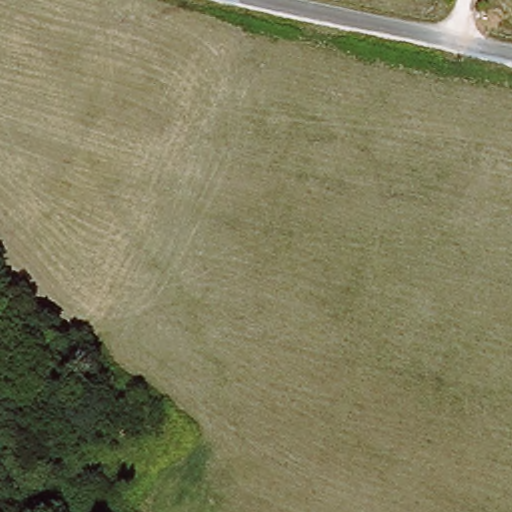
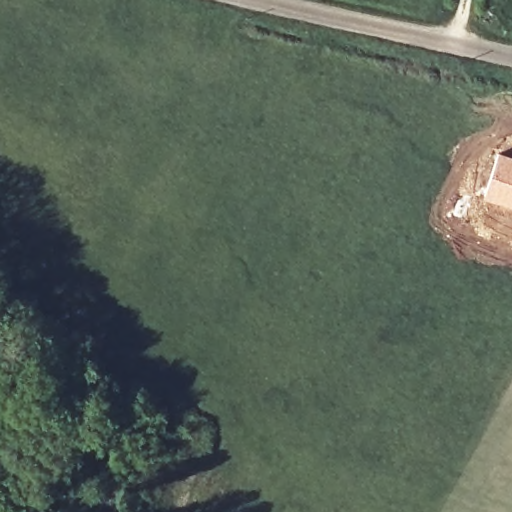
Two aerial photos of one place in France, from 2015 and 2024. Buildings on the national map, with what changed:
new [(498,151),(512,156),(512,207),(482,197),(498,151)]

